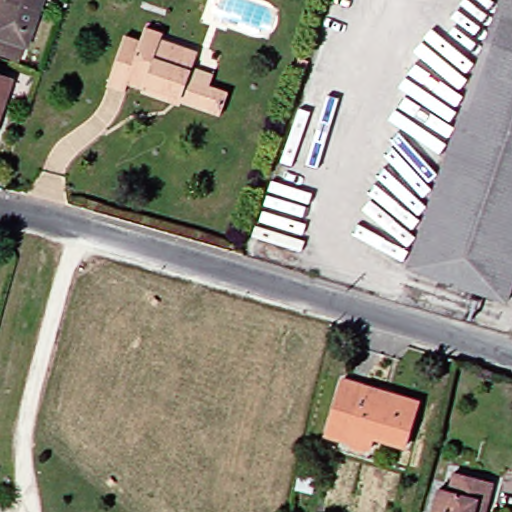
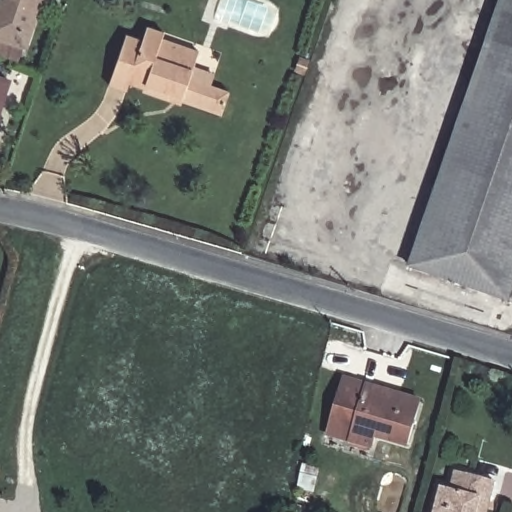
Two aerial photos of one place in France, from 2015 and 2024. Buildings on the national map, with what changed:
unchanged [(22,60),(0,53),(0,2),(1,0),(42,0),(22,60)]
unchanged [(511,0),(512,0),(512,301),(417,269),(511,0)]
unchanged [(148,95),(149,91),(133,86),(130,94),(114,89),(130,39),(147,44),(152,30),(167,35),(165,42),(201,54),(196,68),(218,76),(215,86),(233,93),(225,115),(184,102),(183,106),(148,95)]
unchanged [(299,82),(292,79),(296,66),(303,69),(299,82)]
unchanged [(0,128),(0,73),(10,77),(1,103),(8,106),(0,128)]
unchanged [(407,447),(375,437),(371,448),(327,435),(343,380),(420,403),(407,447)]
unchanged [(320,469),(314,494),(298,489),(303,465),(320,469)]
unchanged [(454,493),(459,473),(499,483),(494,503),(492,512),(439,512),(445,491),(454,493)]

